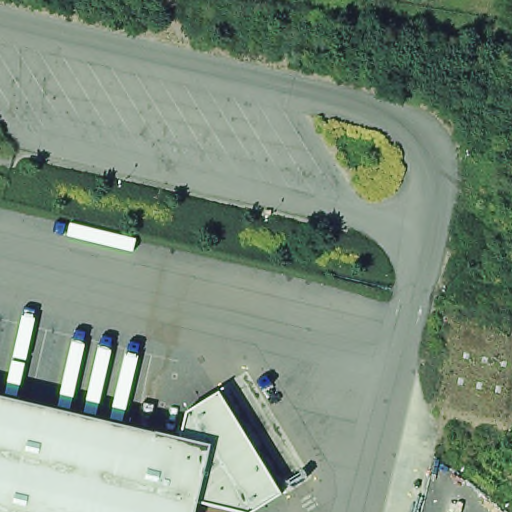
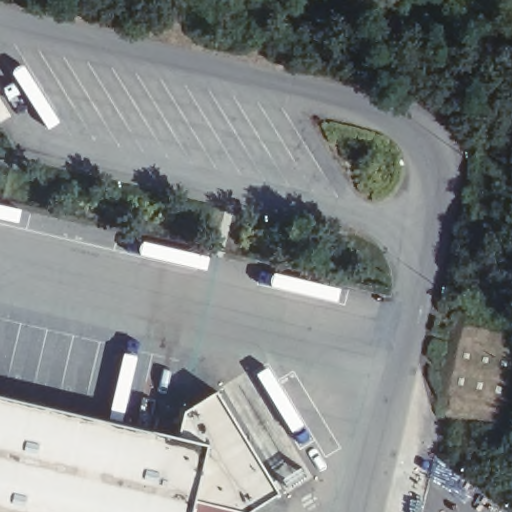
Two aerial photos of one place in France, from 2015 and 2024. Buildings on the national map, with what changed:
unchanged [(190,412),(223,392),(286,495),(258,512),(238,512),(201,503),(215,446),(184,438),(190,412)]
unchanged [(0,395),(165,433),(184,438),(215,446),(201,503),(199,512),(0,512),(0,395)]

